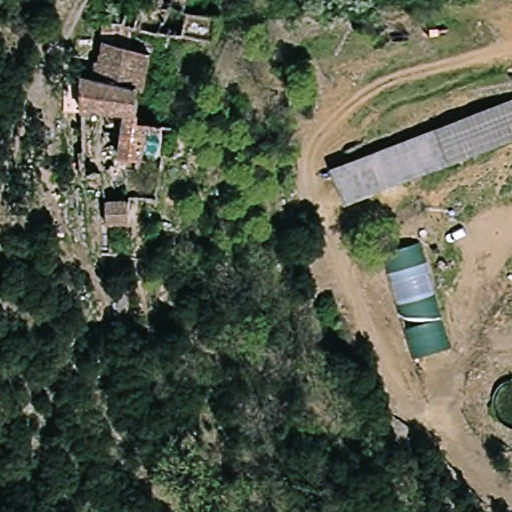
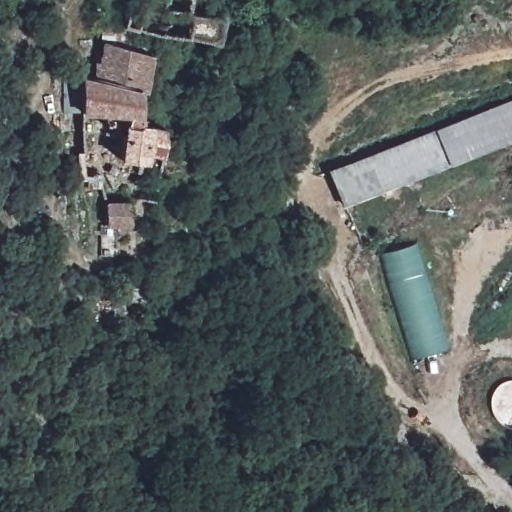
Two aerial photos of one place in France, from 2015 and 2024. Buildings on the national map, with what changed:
unchanged [(141,165),(120,161),(122,140),(106,138),(109,116),(80,113),(85,76),(94,78),(102,42),(106,32),(134,38),(164,40),(164,45),(154,89),(149,87),(143,121),(165,126),(158,160),(145,159),(141,165)]
unchanged [(512,103),(512,135),(346,204),(334,174),(512,103)]
unchanged [(129,200),(131,229),(106,229),(106,200),(129,200)]
unchanged [(415,360),(383,257),(421,244),(456,348),(415,360)]

